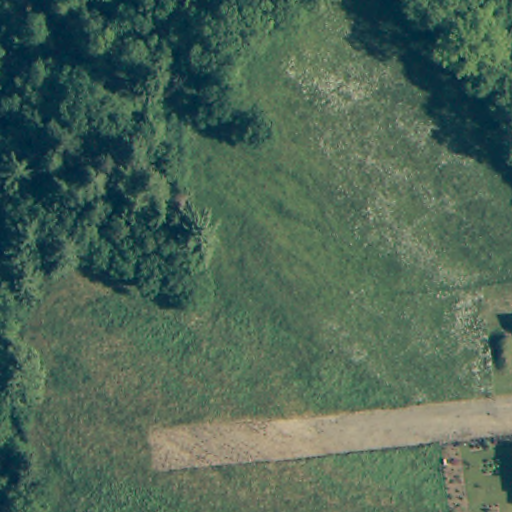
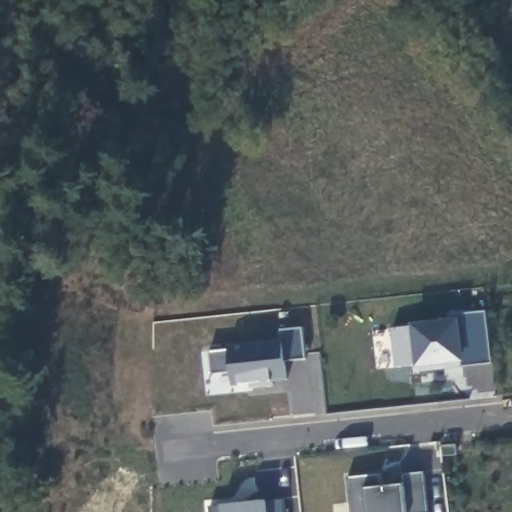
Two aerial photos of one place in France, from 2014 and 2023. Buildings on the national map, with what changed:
new [(461,362),(418,366),(395,368),(392,327),(411,323),(448,320),(447,314),(486,311),(491,363),(461,362)]
new [(288,362),(287,382),(230,385),(230,374),(211,375),(208,353),(230,351),(228,346),(281,342),(280,331),(302,329),(306,359),(288,362)]
new [(352,512),(348,478),(381,475),(381,487),(404,485),(402,475),(424,473),(428,512),(352,512)]
new [(221,506),(266,502),(284,499),(286,512),(209,512),(208,507),(221,506)]

